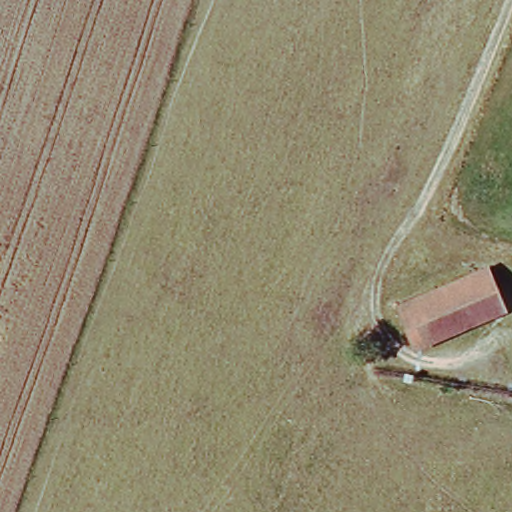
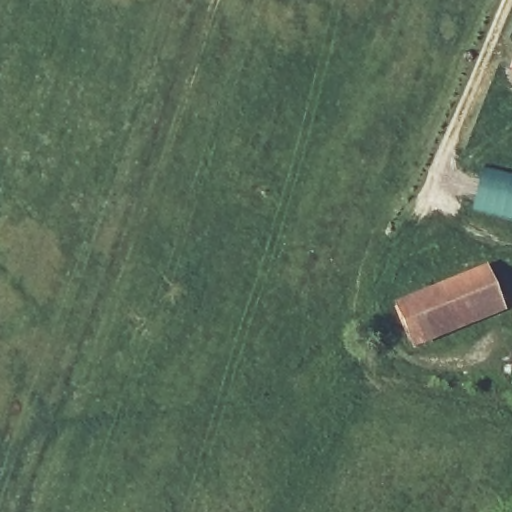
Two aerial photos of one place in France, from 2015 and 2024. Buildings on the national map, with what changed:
new [(482,171),(512,178),(512,222),(474,210),(478,188),(482,171)]
unchanged [(501,316),(414,355),(394,312),(477,273),(482,282),(501,316)]

